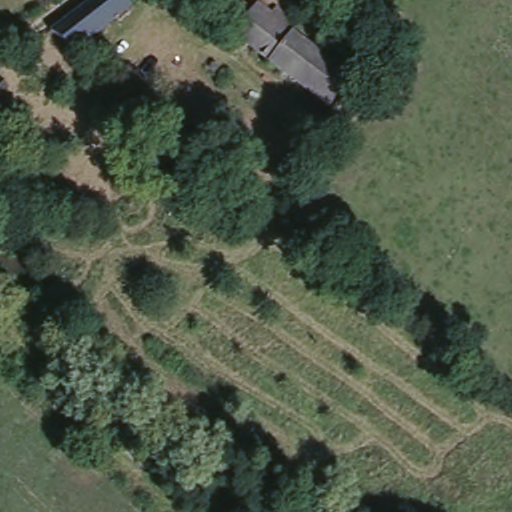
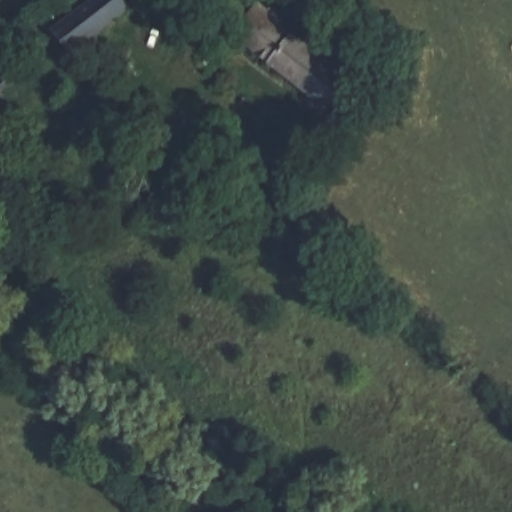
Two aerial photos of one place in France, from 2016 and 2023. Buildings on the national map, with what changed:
unchanged [(91,0),(125,0),(132,9),(70,56),(50,31),(91,0)]
unchanged [(330,104),(255,48),(231,30),(252,0),(255,0),(267,10),(274,1),(297,17),(291,27),(322,50),(354,72),(330,104)]

